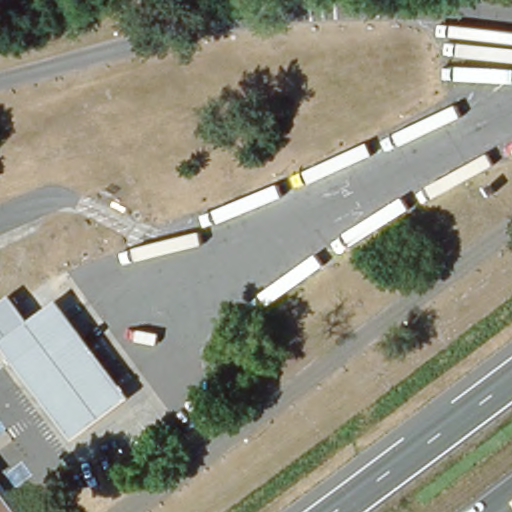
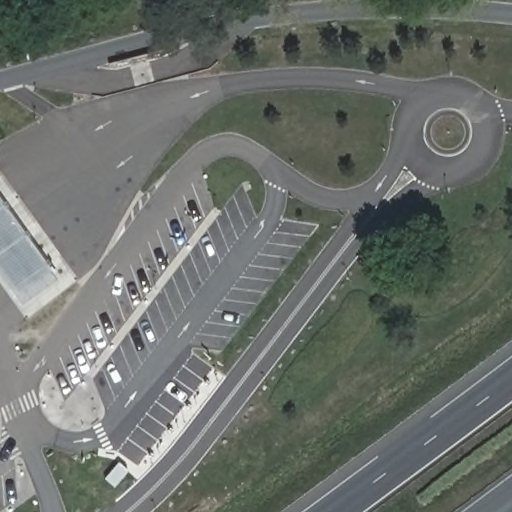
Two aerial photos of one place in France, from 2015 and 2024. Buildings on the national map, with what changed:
new [(24,306),(0,273),(0,197),(59,280),(24,306)]
demolished [(136,392),(74,435),(1,343),(55,299),(136,392)]
demolished [(19,512),(0,512),(0,488),(19,512)]

